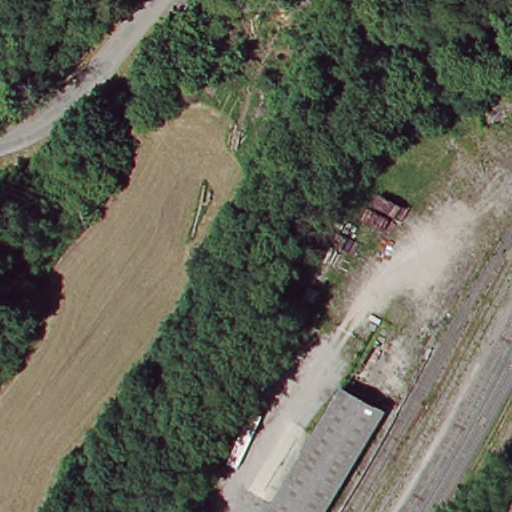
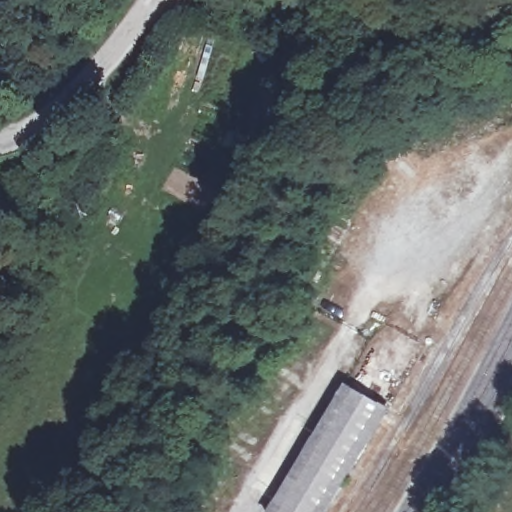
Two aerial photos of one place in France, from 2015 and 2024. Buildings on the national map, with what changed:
unchanged [(330,512),(274,512),(347,387),(391,413),(330,512)]

